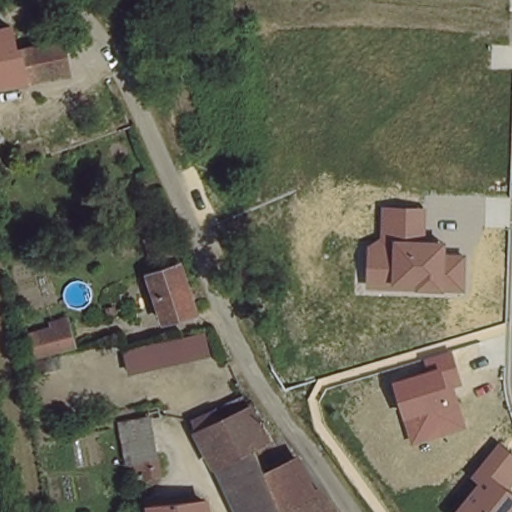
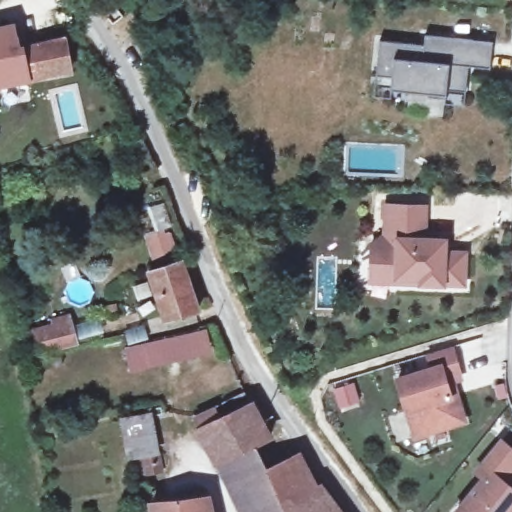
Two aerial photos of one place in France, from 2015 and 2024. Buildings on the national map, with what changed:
unchanged [(0,87),(0,33),(14,30),(20,52),(24,51),(31,82),(27,82),(0,87)]
new [(446,103),(447,98),(428,96),(428,92),(392,89),(391,97),(375,95),(377,75),(380,40),(427,45),(429,35),(472,39),(493,41),(491,67),(469,65),(466,91),(465,105),(446,103)]
unchanged [(65,42),(67,49),(76,46),(79,57),(69,60),(72,74),(31,82),(24,51),(65,42)]
unchanged [(427,205),(427,237),(447,238),(447,250),(469,251),(467,289),(367,285),(369,244),(382,236),(382,202),(427,205)]
unchanged [(181,259),(197,310),(166,318),(151,270),(181,259)]
unchanged [(42,352),(34,325),(72,311),(79,341),(42,352)]
unchanged [(207,328),(213,352),(131,370),(125,347),(207,328)]
unchanged [(429,367),(425,355),(452,347),(463,382),(457,385),(468,425),(412,441),(395,377),(429,367)]
unchanged [(215,470),(197,436),(192,427),(212,417),(217,427),(225,423),(217,412),(240,401),(246,413),(260,437),(265,447),(251,455),(264,481),(279,472),(294,465),(316,508),(317,512),(235,512),(215,470)]
unchanged [(151,410),(160,465),(146,468),(142,452),(131,455),(123,416),(151,410)]
unchanged [(479,478),(471,472),(499,439),(512,449),(512,487),(512,512),(452,512),(479,478)]
unchanged [(153,502),(207,495),(211,512),(154,512),(153,502)]

